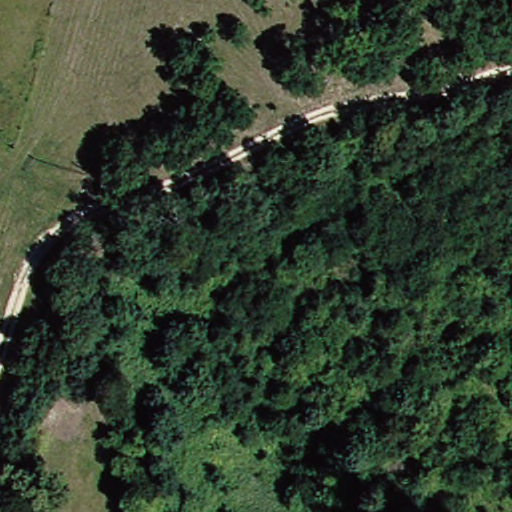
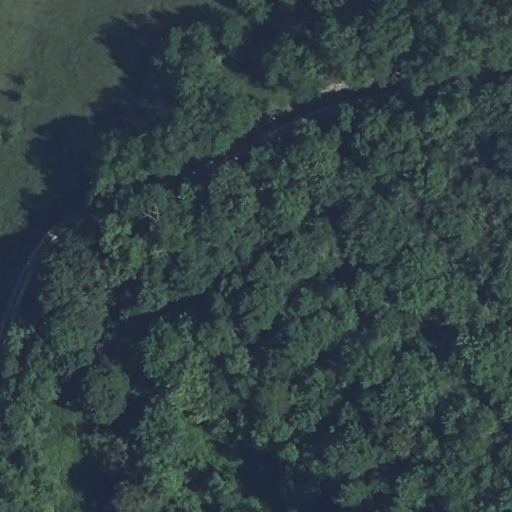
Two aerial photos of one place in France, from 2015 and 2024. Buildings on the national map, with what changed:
[]

